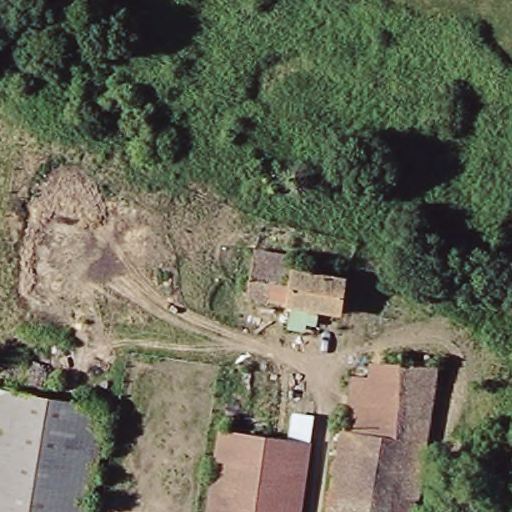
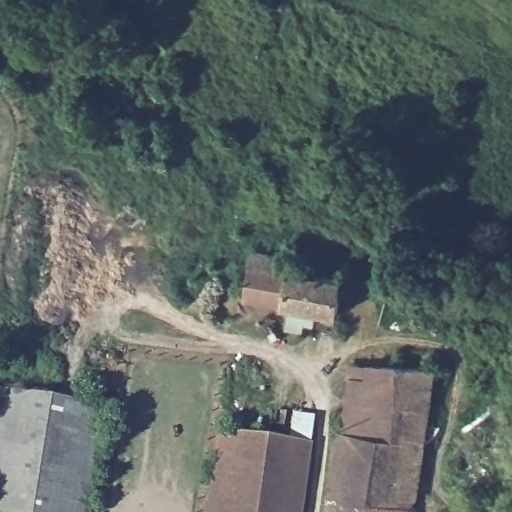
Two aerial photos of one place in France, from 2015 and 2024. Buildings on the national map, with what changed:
unchanged [(285,255),(283,272),(328,279),(345,281),(339,314),(250,300),(257,252),(285,255)]
unchanged [(405,492),(403,512),(333,512),(344,435),(391,442),(397,404),(367,399),(372,365),(432,375),(413,493),(405,492)]
unchanged [(85,512),(16,512),(0,509),(0,395),(104,414),(85,512)]
unchanged [(208,512),(218,450),(306,465),(299,512),(208,512)]

